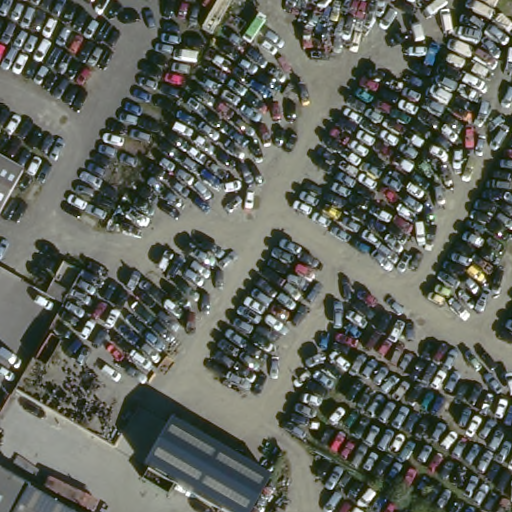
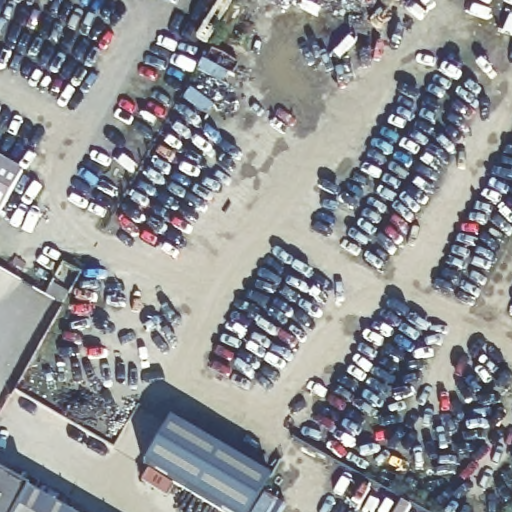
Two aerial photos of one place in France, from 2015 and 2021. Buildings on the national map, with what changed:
unchanged [(18,175),(0,209),(0,165),(18,175)]
unchanged [(253,512),(224,512),(143,465),(170,420),(271,480),(253,512)]
unchanged [(53,507),(50,512),(0,512),(0,477),(53,507)]
unchanged [(50,512),(53,507),(61,512),(50,512)]

